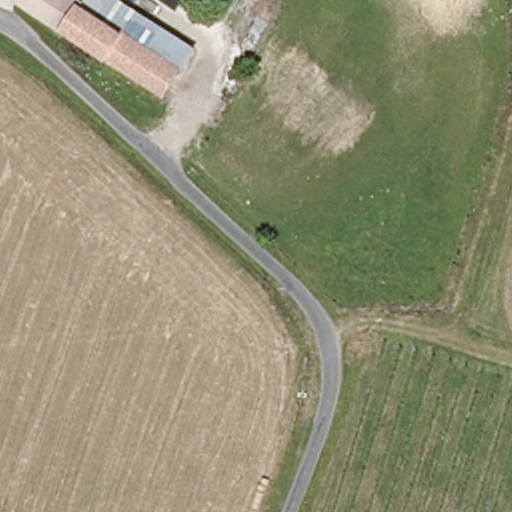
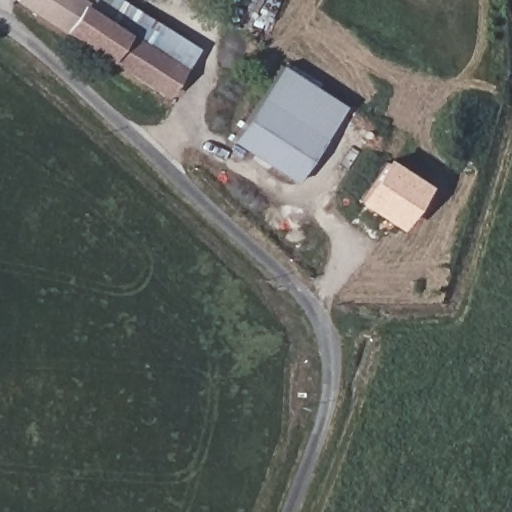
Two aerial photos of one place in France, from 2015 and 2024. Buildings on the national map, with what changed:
unchanged [(22,0),(74,0),(181,71),(166,94),(22,0)]
unchanged [(114,0),(192,52),(181,71),(74,0),(114,0)]
new [(295,182),(231,141),(281,65),(344,106),(295,182)]
new [(357,201),(385,160),(426,186),(399,229),(357,201)]

